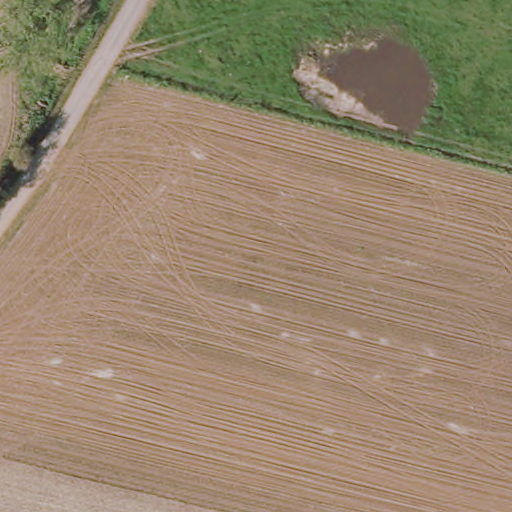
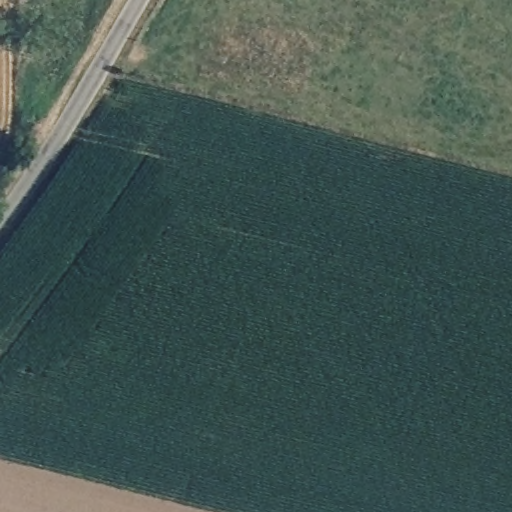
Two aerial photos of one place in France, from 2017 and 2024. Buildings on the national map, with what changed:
[]

